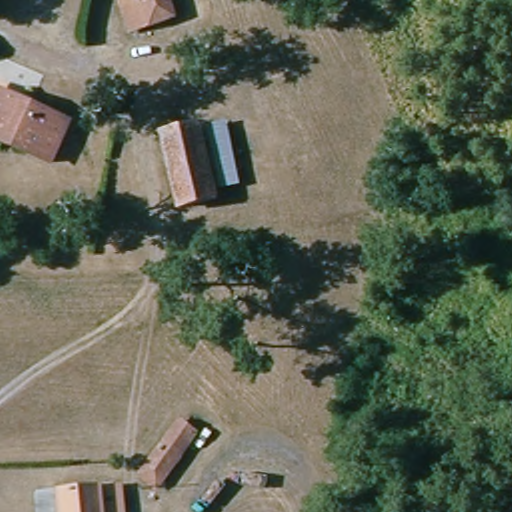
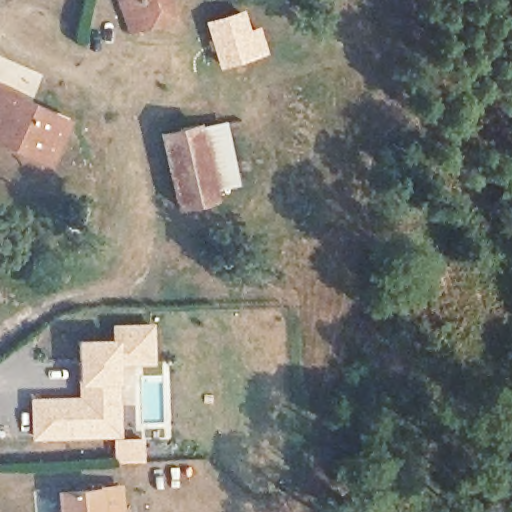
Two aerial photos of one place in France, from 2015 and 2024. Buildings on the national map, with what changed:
unchanged [(176,17),(156,24),(150,27),(131,32),(131,31),(121,0),(170,0),(174,12),(176,17)]
new [(244,7),(250,29),(259,26),(268,54),(219,70),(204,20),(244,7)]
unchanged [(0,92),(24,103),(69,124),(55,155),(51,163),(40,158),(18,148),(7,143),(0,140),(0,92)]
unchanged [(221,123),(234,185),(210,190),(195,129),(221,123)]
unchanged [(195,129),(210,190),(213,199),(175,208),(158,135),(195,127),(195,129)]
new [(79,396),(79,383),(78,338),(115,338),(113,322),(155,322),(157,364),(121,363),(121,382),(123,437),(33,440),(31,397),(79,396)]
demolished [(158,487),(144,476),(180,424),(195,435),(158,487)]
unchanged [(104,512),(63,512),(61,493),(102,490),(104,512)]

